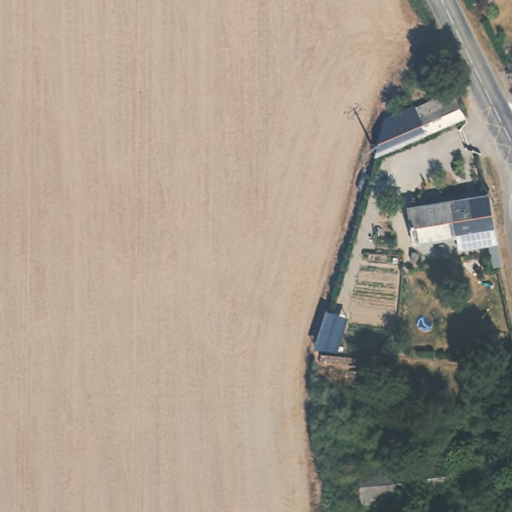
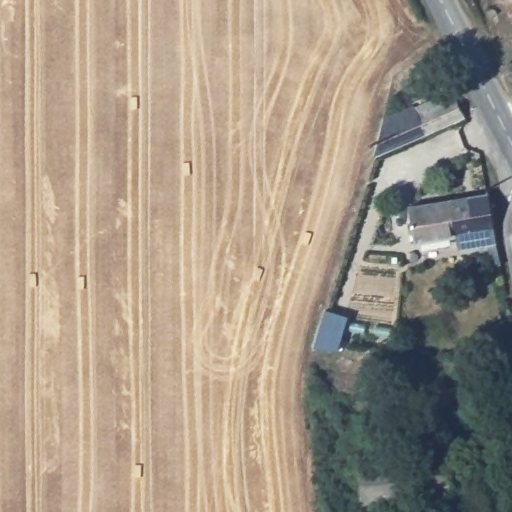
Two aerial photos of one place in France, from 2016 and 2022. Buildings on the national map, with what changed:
unchanged [(505,63),(512,62),(512,77),(505,63)]
unchanged [(449,107),(454,127),(378,148),(385,114),(408,109),(410,118),(449,107)]
unchanged [(469,188),(482,236),(444,246),(442,233),(395,241),(392,208),(469,188)]
unchanged [(427,434),(428,443),(433,443),(438,482),(410,487),(411,493),(385,497),(379,461),(407,457),(405,438),(427,434)]
unchanged [(357,502),(352,464),(379,461),(385,497),(357,502)]

